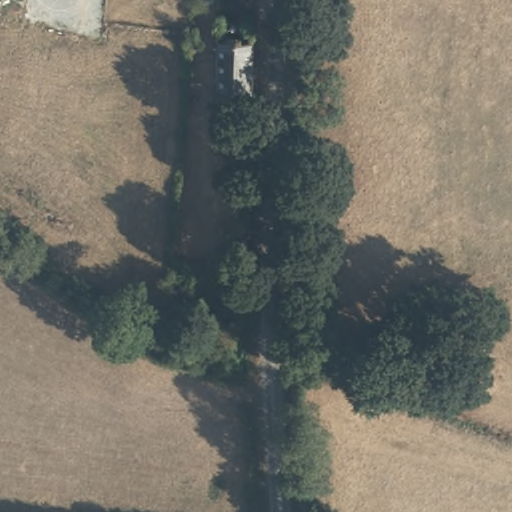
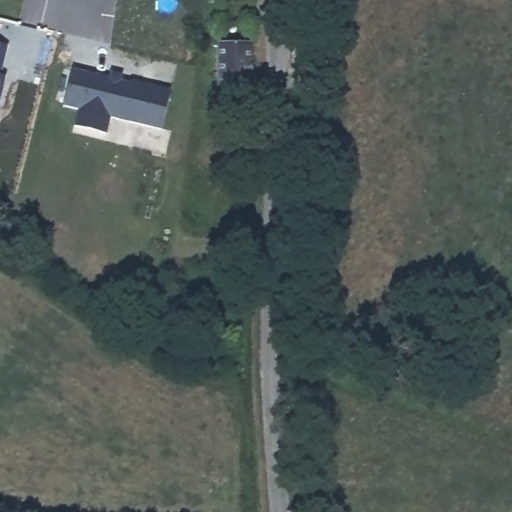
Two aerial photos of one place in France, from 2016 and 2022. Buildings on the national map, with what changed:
unchanged [(253,41),(252,91),(219,89),(219,41),(253,41)]
new [(7,46),(1,76),(6,76),(0,101),(0,44),(7,46)]
new [(106,133),(75,126),(79,110),(64,106),(71,69),(110,79),(111,71),(124,75),(122,80),(130,82),(132,81),(170,91),(161,129),(110,117),(106,133)]

